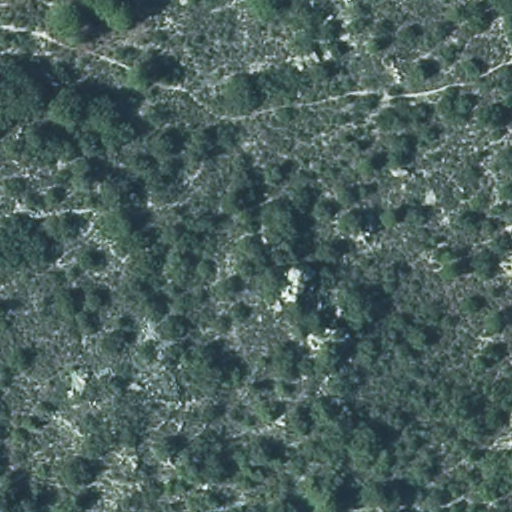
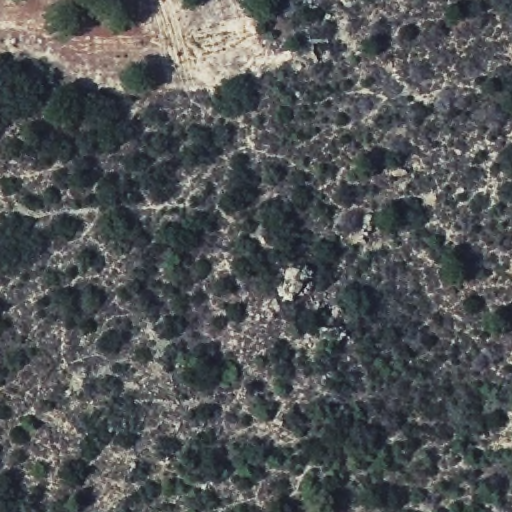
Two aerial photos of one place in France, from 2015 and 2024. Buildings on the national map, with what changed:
unchanged [(512,262),(512,277),(510,262),(512,262)]

